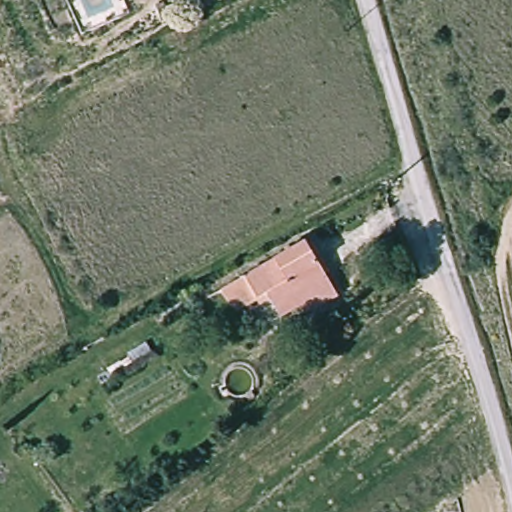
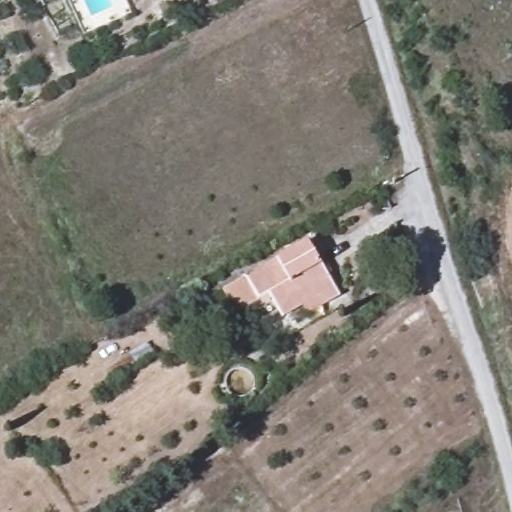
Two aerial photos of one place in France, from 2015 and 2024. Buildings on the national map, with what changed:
unchanged [(323,288),(286,309),(273,283),(255,293),(257,296),(247,300),(235,277),(320,233),(348,291),(330,299),(323,288)]
unchanged [(335,311),(290,335),(275,334),(257,296),(255,293),(273,283),(286,309),(323,288),(330,299),(335,311)]

